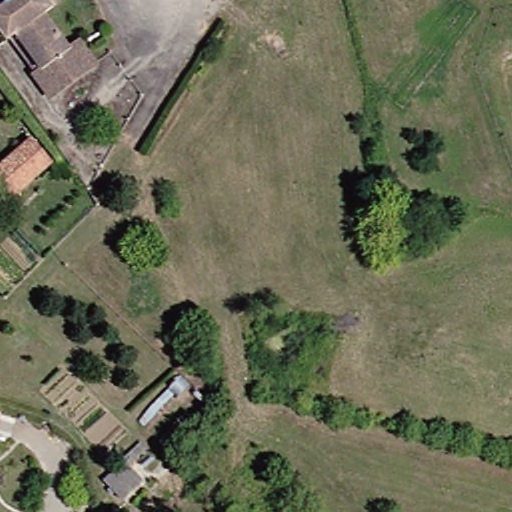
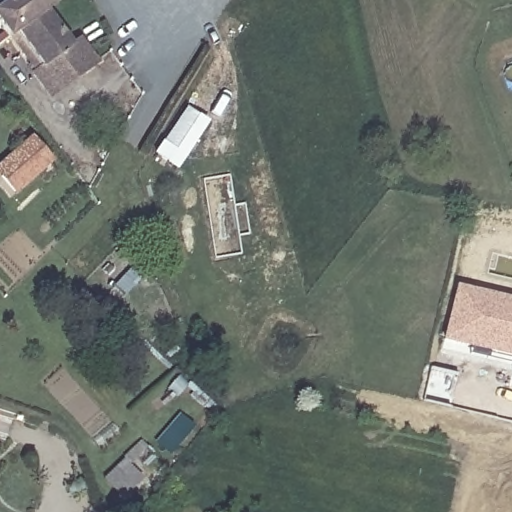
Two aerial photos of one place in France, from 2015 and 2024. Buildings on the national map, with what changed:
unchanged [(67,48),(76,43),(91,62),(52,91),(34,70),(41,65),(12,28),(10,31),(0,17),(0,1),(1,0),(58,0),(42,12),(67,48)]
unchanged [(45,158),(11,193),(0,184),(0,165),(24,139),(45,158)]
new [(457,284),(512,298),(512,358),(442,341),(457,284)]
new [(512,370),(512,374),(511,374),(512,370)]

